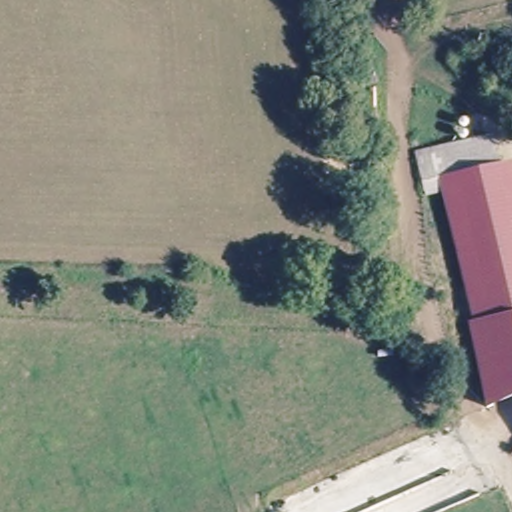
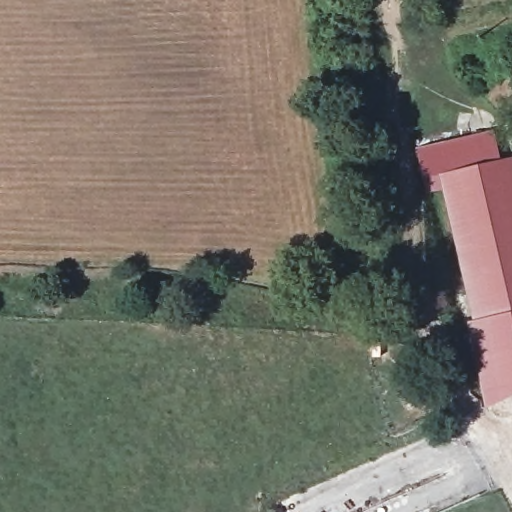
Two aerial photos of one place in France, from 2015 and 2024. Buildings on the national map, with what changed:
unchanged [(440,185),(431,187),(420,143),(492,127),(498,156),(512,154),(512,392),(492,400),(440,185)]

